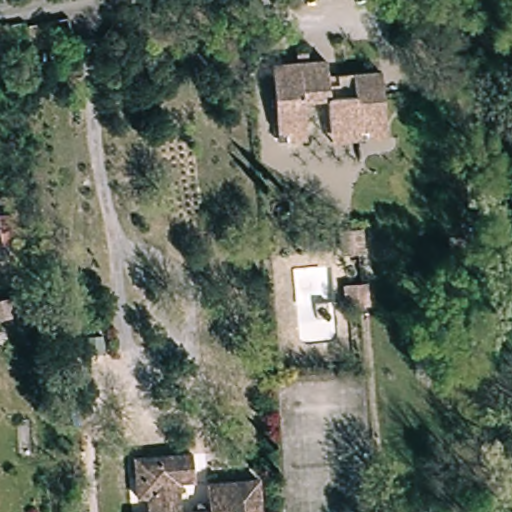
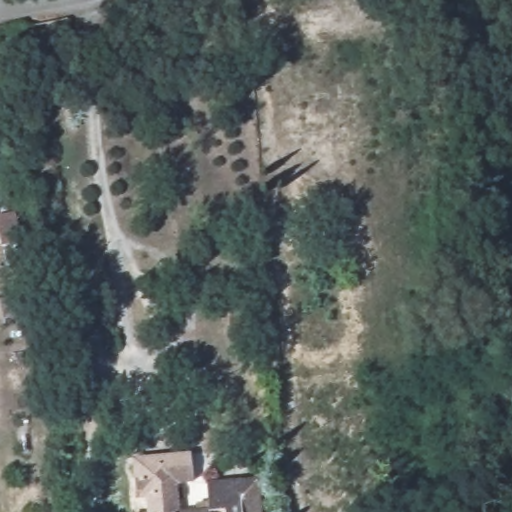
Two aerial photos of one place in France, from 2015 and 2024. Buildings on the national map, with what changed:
demolished [(272,66),(322,61),(322,75),(376,69),(382,136),(327,141),(323,97),(300,100),(303,140),(279,142),(272,66)]
demolished [(340,255),(337,230),(359,225),(363,251),(340,255)]
demolished [(367,308),(347,307),(344,283),(367,281),(367,308)]
unchanged [(127,486),(124,455),(187,448),(190,480),(177,482),(180,509),(212,506),(210,477),(257,473),(261,512),(150,512),(147,484),(127,486)]

